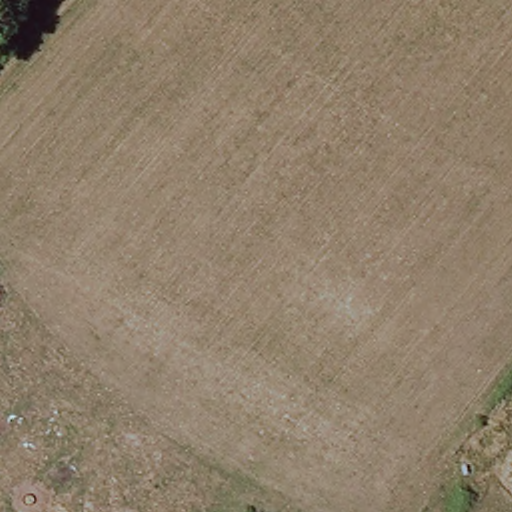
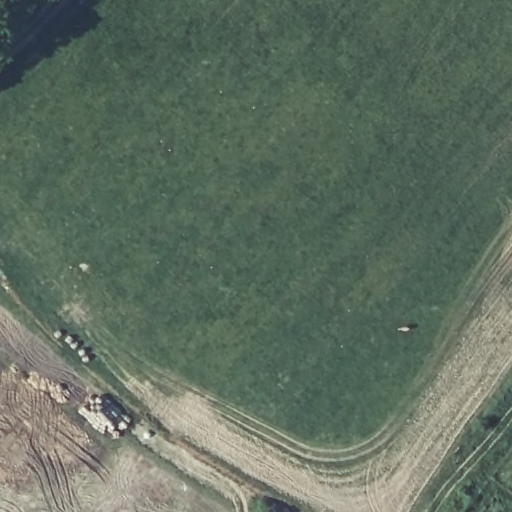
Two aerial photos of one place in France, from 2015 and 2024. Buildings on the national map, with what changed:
[]

